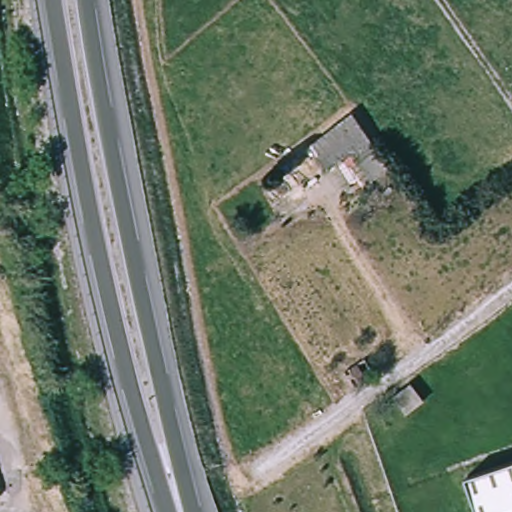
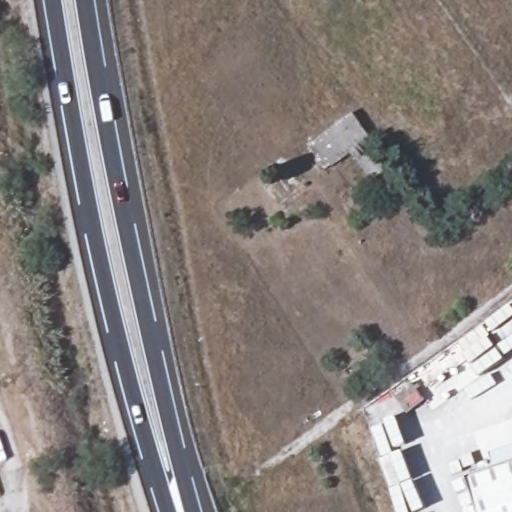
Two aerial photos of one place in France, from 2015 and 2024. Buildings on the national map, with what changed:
unchanged [(310,141),(354,108),(392,161),(374,174),(352,144),(327,163),(310,141)]
unchanged [(363,382),(352,366),(365,357),(377,373),(363,382)]
unchanged [(402,412),(390,397),(407,383),(420,400),(402,412)]
unchanged [(463,482),(512,465),(512,512),(473,512),(463,482)]

